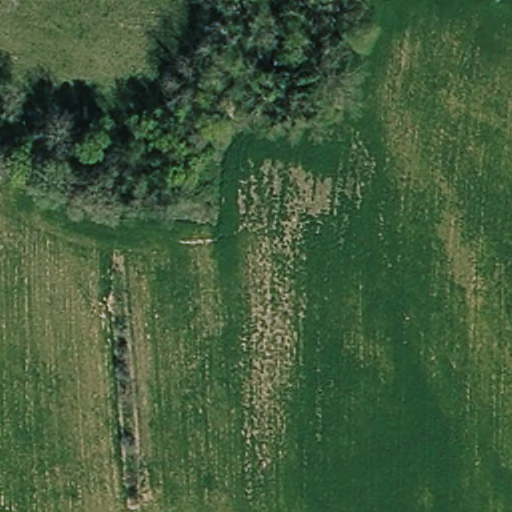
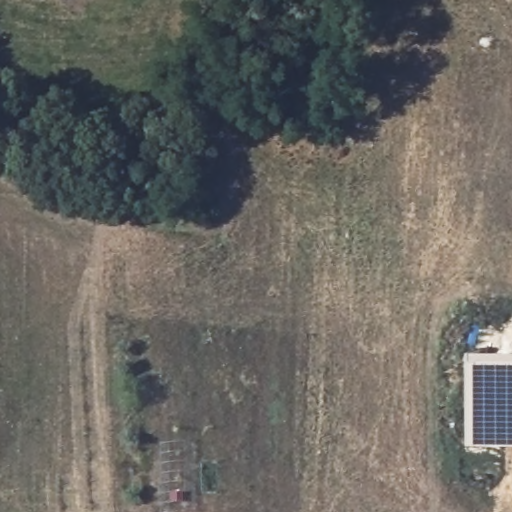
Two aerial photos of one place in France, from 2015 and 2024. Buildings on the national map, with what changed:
new [(466,360),(512,360),(512,450),(465,449),(466,360)]

